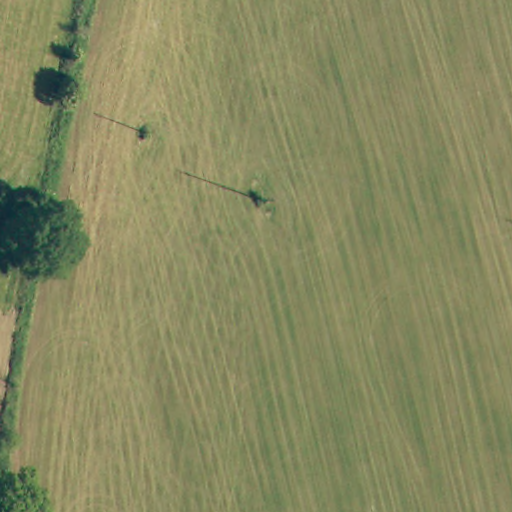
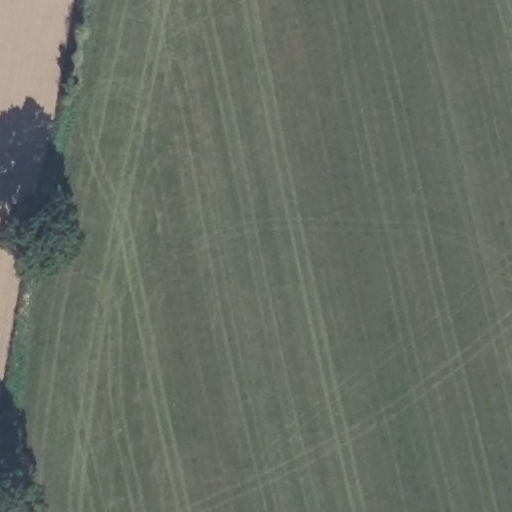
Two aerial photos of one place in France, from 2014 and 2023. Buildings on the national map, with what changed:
[]

